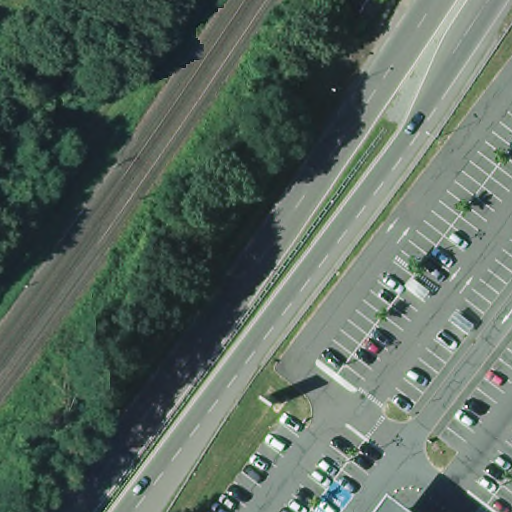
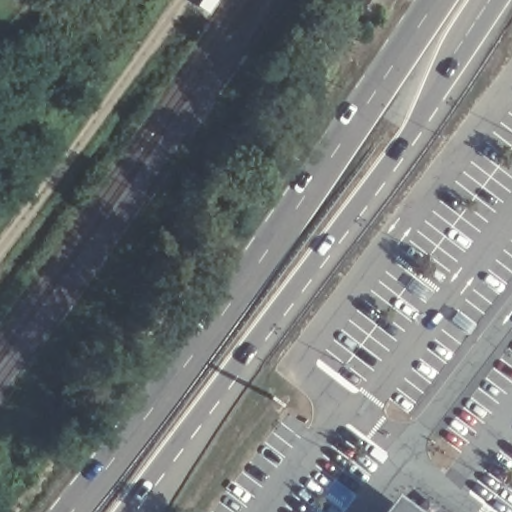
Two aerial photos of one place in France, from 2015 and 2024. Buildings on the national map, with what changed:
unchanged [(342,0),(360,0),(355,7),(342,0)]
unchanged [(426,512),(384,512),(400,492),(426,512)]

